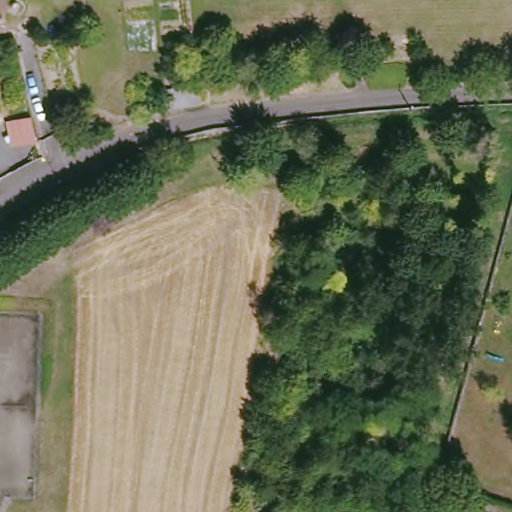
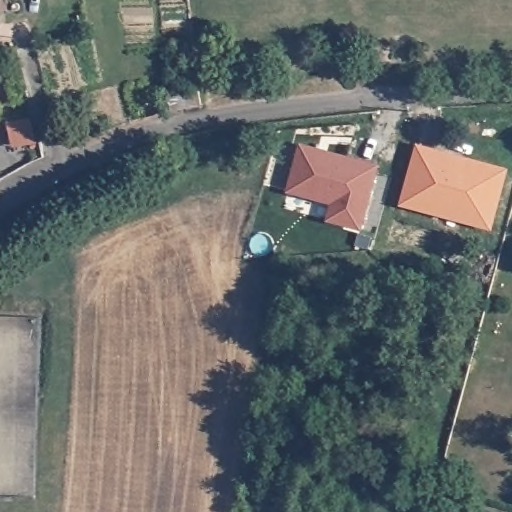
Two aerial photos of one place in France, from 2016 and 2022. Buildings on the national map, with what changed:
unchanged [(174,95),(202,92),(205,113),(177,121),(174,95)]
new [(327,221),(330,205),(287,193),(300,145),(379,166),(362,231),(327,221)]
new [(509,170),(492,230),(400,206),(416,145),(509,170)]

